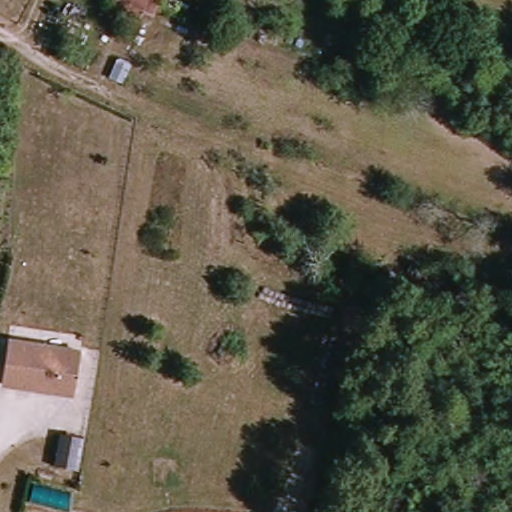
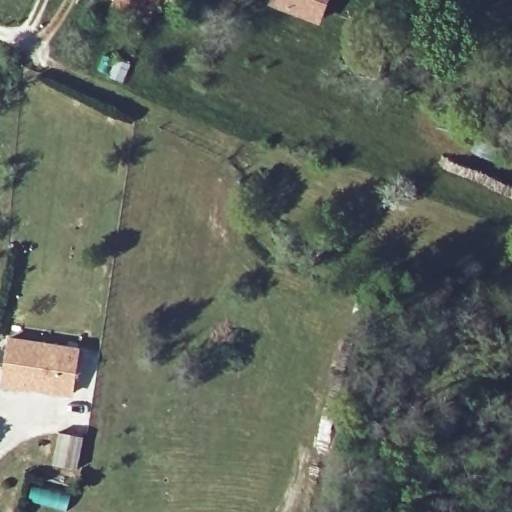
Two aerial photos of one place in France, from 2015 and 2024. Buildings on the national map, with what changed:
unchanged [(163,8),(155,24),(114,8),(118,0),(166,0),(163,8)]
new [(272,0),(329,0),(320,24),(270,5),(272,0)]
unchanged [(9,334),(80,346),(74,392),(3,381),(9,334)]

